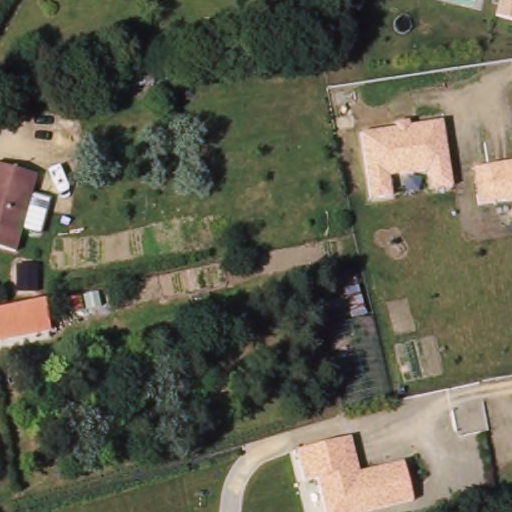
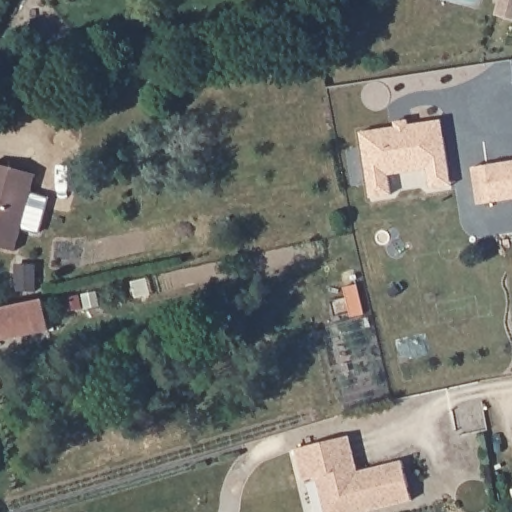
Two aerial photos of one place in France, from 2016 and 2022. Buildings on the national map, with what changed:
unchanged [(495,17),(499,0),(512,0),(512,21),(495,17)]
unchanged [(452,184),(432,187),(427,168),(388,174),(392,194),(371,198),(360,132),(442,120),(452,184)]
unchanged [(478,204),(472,167),(512,161),(512,200),(478,204)]
unchanged [(0,166),(40,177),(19,251),(0,247),(0,166)]
unchanged [(0,339),(0,306),(45,297),(51,328),(0,339)]
unchanged [(350,438),(356,472),(400,462),(408,502),(371,512),(322,512),(315,481),(302,484),(292,449),(350,438)]

